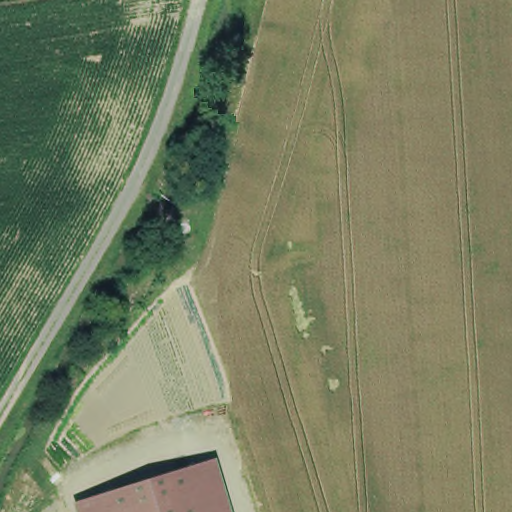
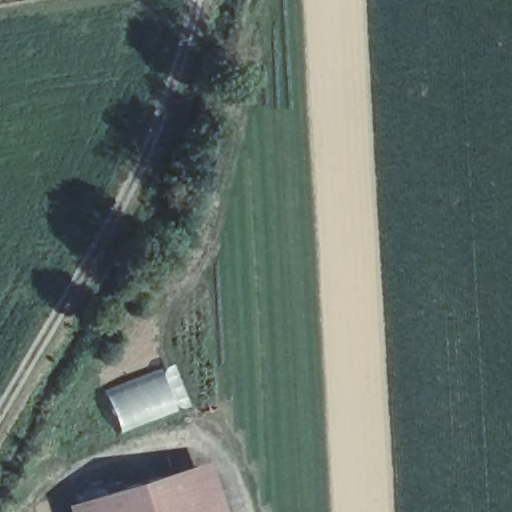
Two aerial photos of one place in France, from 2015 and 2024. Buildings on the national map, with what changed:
new [(165,370),(181,414),(113,439),(94,396),(165,370)]
unchanged [(210,460),(226,512),(68,512),(66,506),(210,460)]

